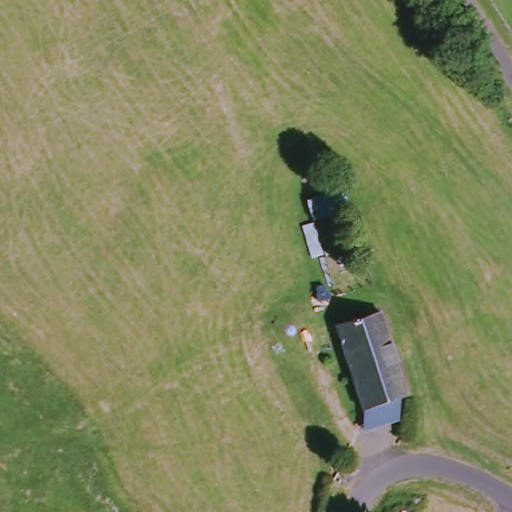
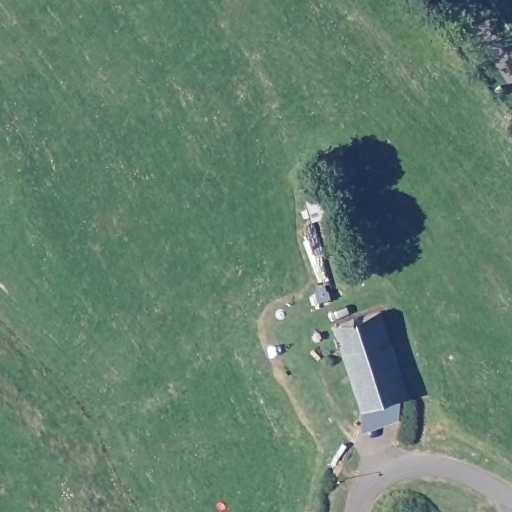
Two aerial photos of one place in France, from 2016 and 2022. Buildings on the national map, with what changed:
unchanged [(387,313),(414,400),(371,412),(344,328),(387,313)]

